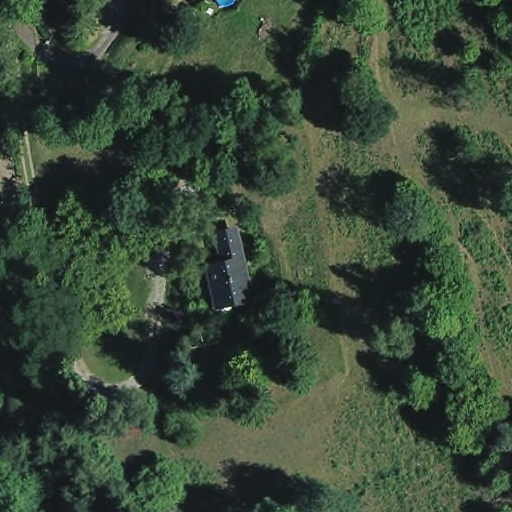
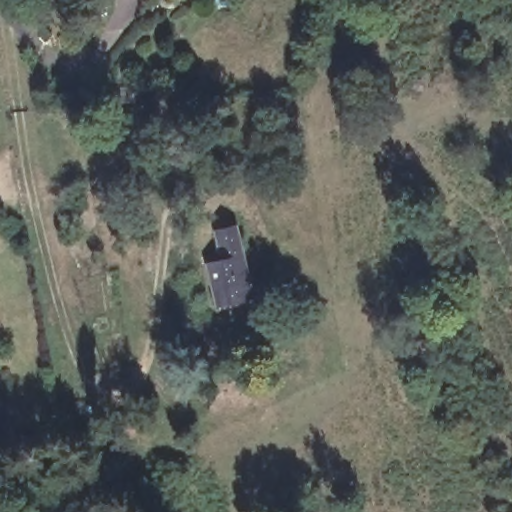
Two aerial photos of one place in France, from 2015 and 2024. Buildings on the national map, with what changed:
unchanged [(234,240),(248,303),(216,310),(209,276),(224,273),(217,244),(234,240)]

